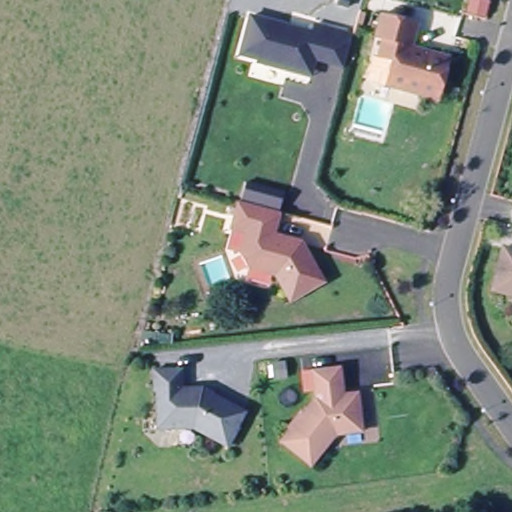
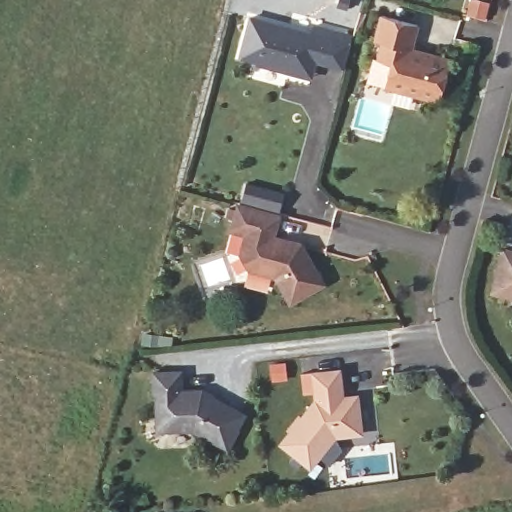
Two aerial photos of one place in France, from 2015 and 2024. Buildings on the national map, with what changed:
unchanged [(479,9),(482,0),(501,0),(497,14),(479,9)]
unchanged [(448,60),(436,102),(364,82),(371,59),(375,60),(379,42),(373,40),(379,16),(415,26),(409,49),(448,60)]
unchanged [(288,72),(258,64),(258,61),(241,57),(252,17),(314,35),(316,26),(354,37),(346,70),(316,62),(314,70),(312,79),(288,72)]
unchanged [(274,237),(302,245),(324,285),(291,303),(276,277),(248,270),(240,256),(248,231),(233,227),(239,203),(267,211),(280,214),(274,237)]
unchanged [(488,287),(499,246),(512,249),(512,294),(488,287)]
unchanged [(289,382),(279,382),(277,367),(287,366),(289,382)]
unchanged [(182,388),(190,388),(190,387),(203,387),(213,392),(212,393),(244,412),(237,426),(238,427),(228,445),(193,426),(165,427),(157,418),(156,390),(154,390),(154,368),(182,367),(182,388)]
unchanged [(348,399),(362,397),(366,435),(340,438),(315,469),(285,445),(295,433),(293,432),(304,417),(306,419),(320,402),(318,375),(345,372),(348,399)]

